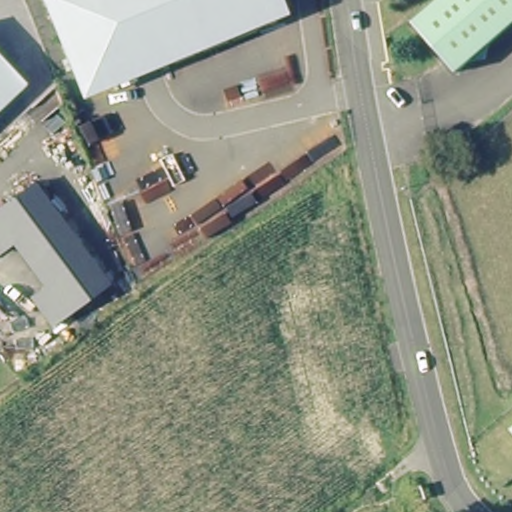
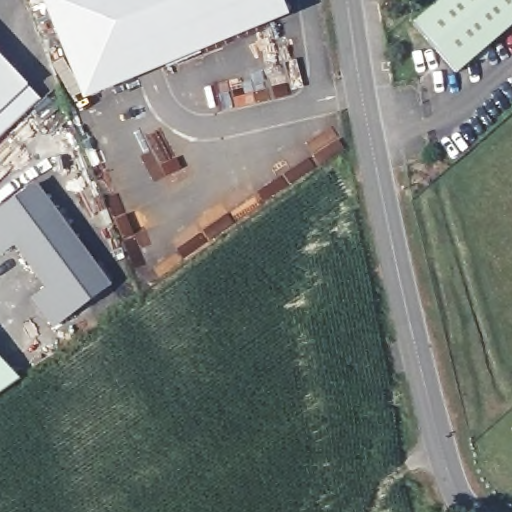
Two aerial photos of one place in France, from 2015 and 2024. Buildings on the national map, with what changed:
unchanged [(274,14),(274,17),(259,24),(84,95),(45,0),(268,0),(274,14)]
unchanged [(421,29),(414,22),(439,0),(512,0),(512,23),(457,71),(421,29)]
unchanged [(0,56),(29,86),(0,114),(0,56)]
unchanged [(53,325),(31,297),(45,287),(39,278),(11,244),(0,252),(0,207),(30,183),(108,282),(53,325)]
new [(0,392),(0,359),(19,379),(0,392)]

